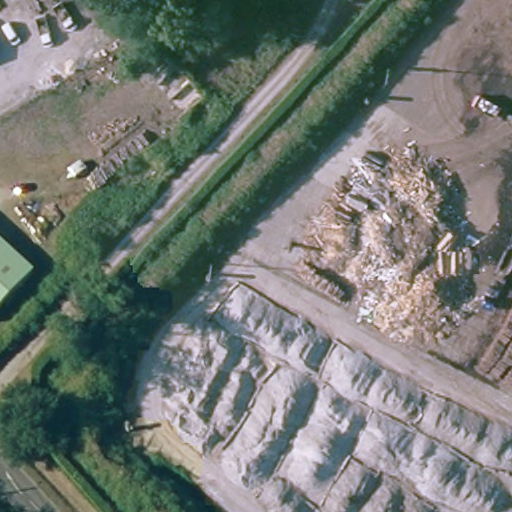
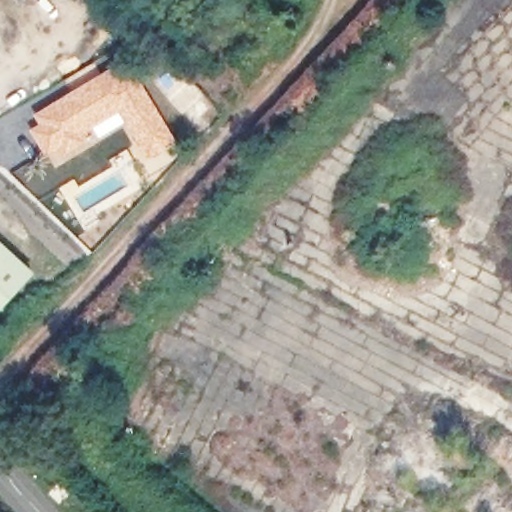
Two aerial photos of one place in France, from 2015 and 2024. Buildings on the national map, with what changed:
unchanged [(5,36),(0,38),(0,22),(5,36)]
unchanged [(2,54),(0,56),(0,48),(2,54)]
new [(45,158),(27,129),(36,124),(31,114),(125,58),(151,98),(177,144),(145,161),(124,126),(99,141),(51,166),(45,158)]
unchanged [(30,274),(0,307),(0,246),(30,274)]

